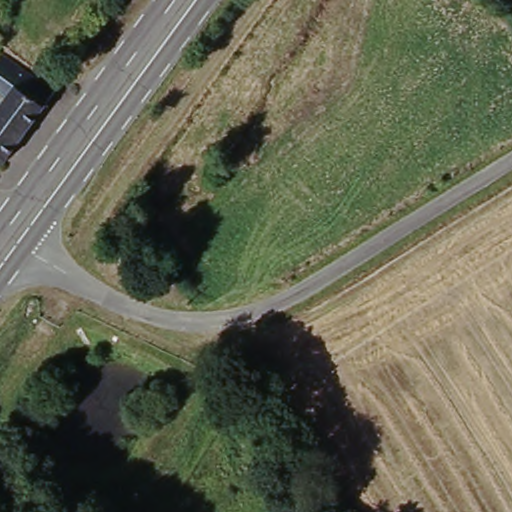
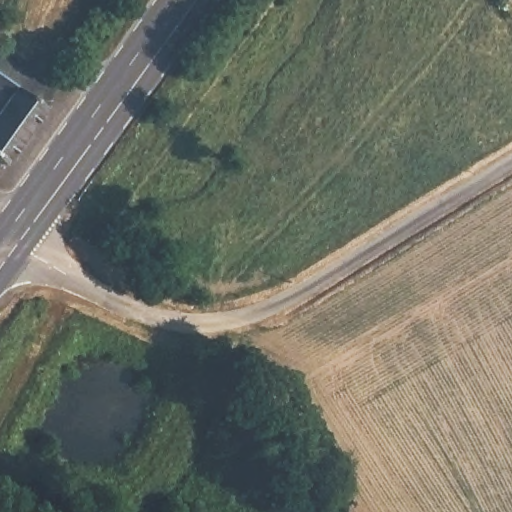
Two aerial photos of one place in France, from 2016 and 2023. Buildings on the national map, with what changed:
unchanged [(59,96),(7,168),(0,163),(0,60),(3,56),(59,96)]

